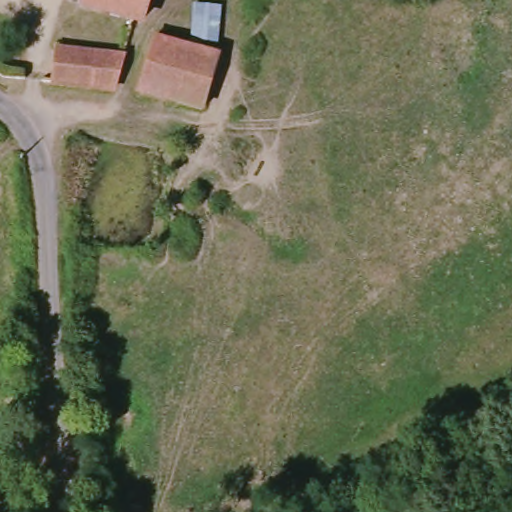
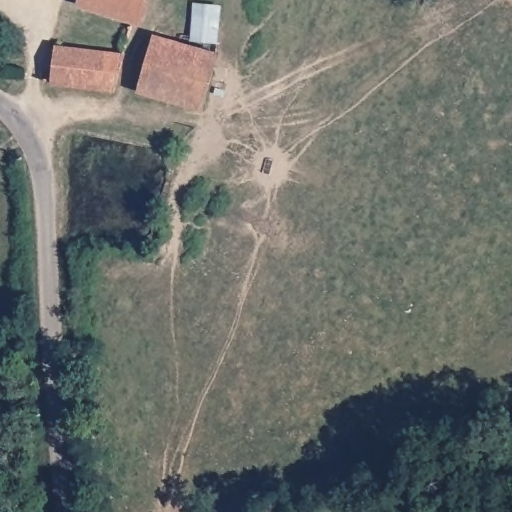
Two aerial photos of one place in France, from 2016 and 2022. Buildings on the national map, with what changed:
unchanged [(63,5),(64,0),(152,0),(142,29),(63,5)]
unchanged [(185,43),(189,3),(221,6),(219,44),(185,43)]
unchanged [(195,111),(132,90),(150,32),(212,52),(195,111)]
unchanged [(48,50),(119,59),(111,93),(52,87),(43,86),(48,50)]

